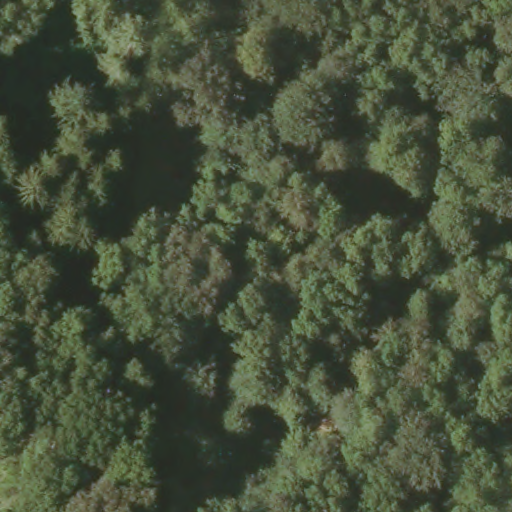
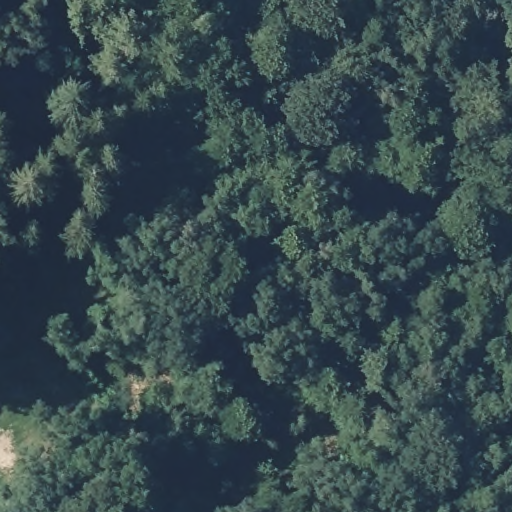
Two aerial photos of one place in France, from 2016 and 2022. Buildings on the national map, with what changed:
[]

